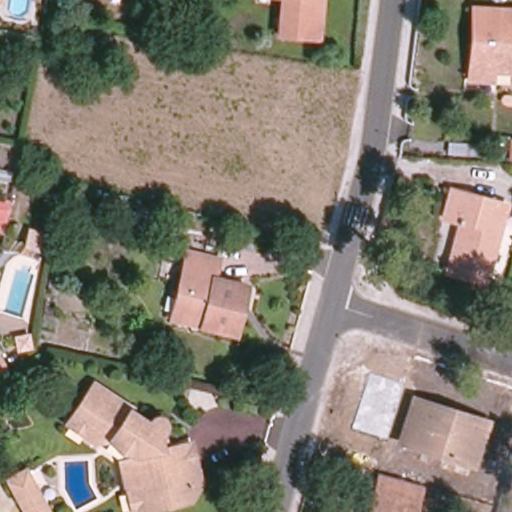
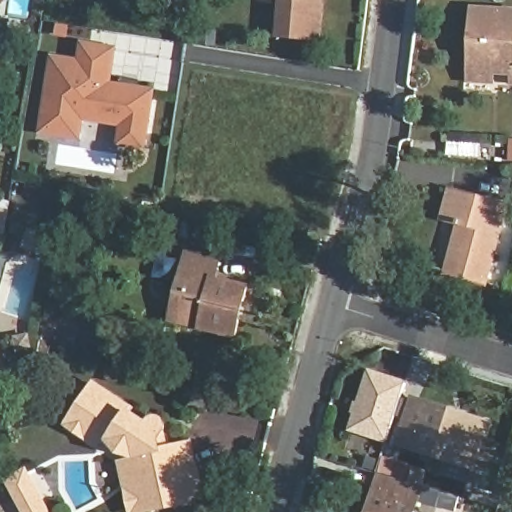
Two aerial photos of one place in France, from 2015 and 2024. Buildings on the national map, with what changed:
unchanged [(314,39),(275,36),(278,0),(318,0),(314,39)]
unchanged [(512,10),(512,43),(512,52),(512,83),(509,83),(510,73),(489,71),(466,70),(469,8),(512,10)]
new [(84,120),(81,140),(43,133),(54,59),(82,63),(85,45),(116,50),(111,85),(122,87),(123,79),(143,82),(141,90),(155,92),(149,130),(146,150),(121,145),(124,126),(84,120)]
unchanged [(487,280),(447,270),(459,223),(444,219),(452,191),(507,205),(487,280)]
unchanged [(180,295),(173,293),(183,252),(216,259),(212,279),(244,287),(239,306),(234,304),(231,315),(237,317),(232,336),(197,328),(199,320),(176,315),(180,295)]
unchanged [(0,371),(0,368),(1,370),(0,371)]
new [(370,378),(402,387),(386,438),(354,428),(370,378)]
unchanged [(117,401),(115,404),(144,423),(153,418),(160,422),(161,429),(155,438),(158,450),(188,443),(197,485),(187,501),(135,512),(128,512),(117,460),(132,457),(106,439),(105,441),(91,443),(63,425),(90,383),(117,401)]
unchanged [(451,412),(448,421),(483,432),(472,465),(403,443),(417,400),(451,412)]
unchanged [(49,512),(27,512),(10,482),(28,472),(49,512)]
unchanged [(422,485),(415,512),(370,512),(381,474),(422,485)]

